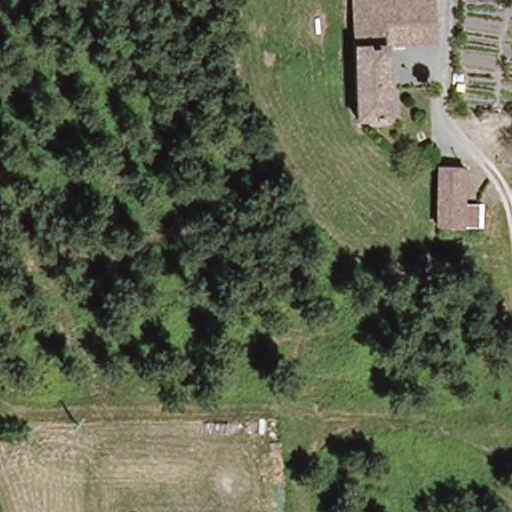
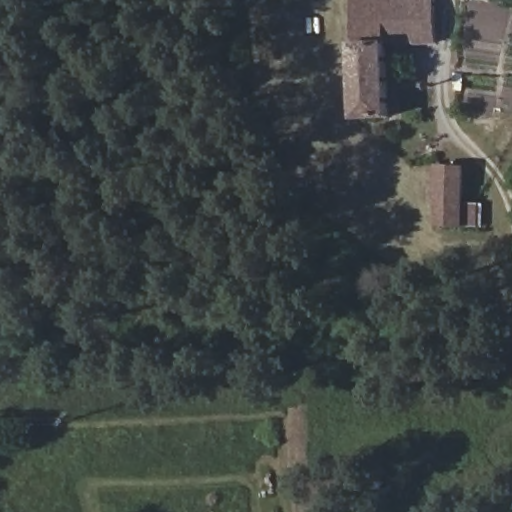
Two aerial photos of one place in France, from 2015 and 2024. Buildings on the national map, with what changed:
unchanged [(383,43),(384,112),(356,112),(354,0),(434,0),(433,39),(383,43)]
unchanged [(424,219),(428,160),(429,158),(450,161),(447,221),(424,219)]

